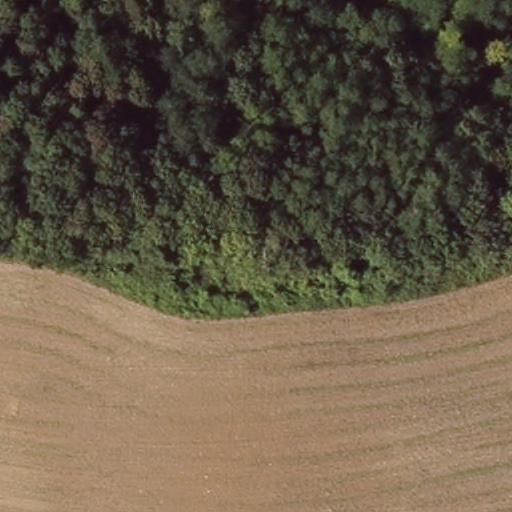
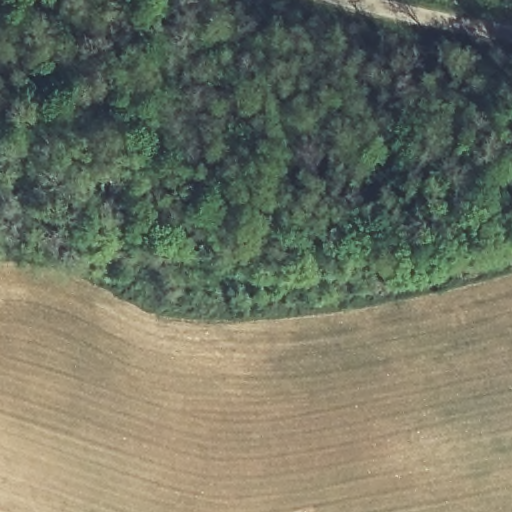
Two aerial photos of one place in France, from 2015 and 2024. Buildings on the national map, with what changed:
[]

